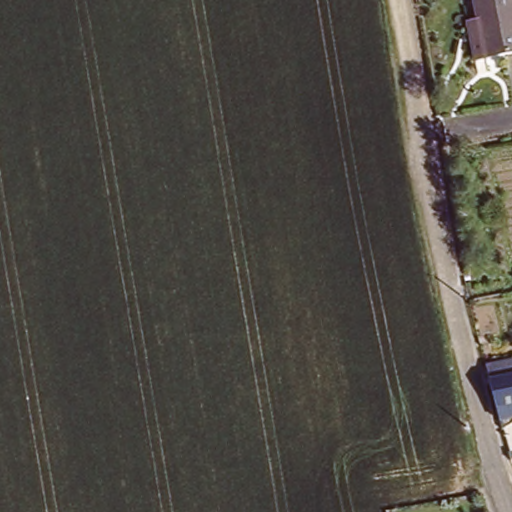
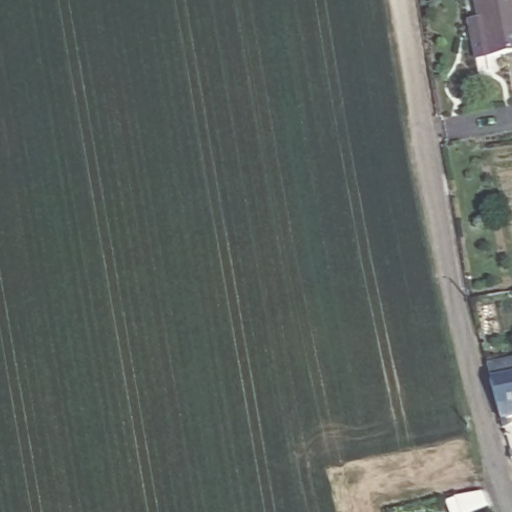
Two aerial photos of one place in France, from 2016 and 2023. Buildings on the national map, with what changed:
unchanged [(482,23),(478,0),(512,0),(512,56),(478,61),(472,25),(482,23)]
unchanged [(512,412),(496,415),(480,361),(503,355),(508,373),(512,372),(512,412)]

